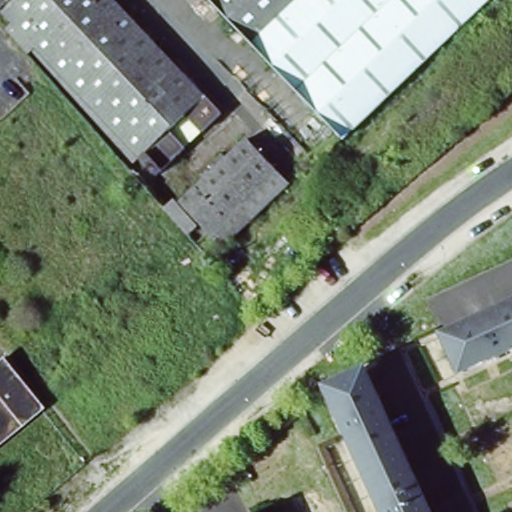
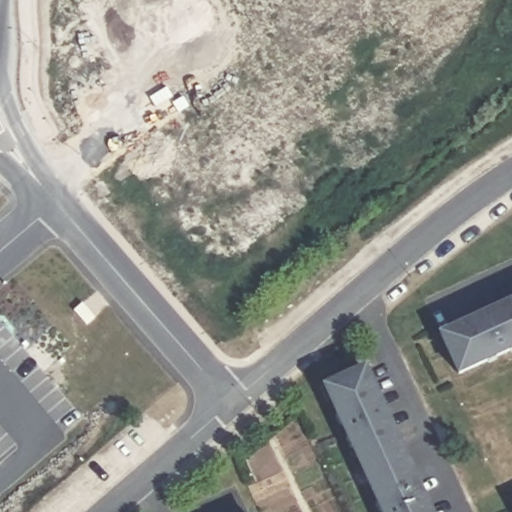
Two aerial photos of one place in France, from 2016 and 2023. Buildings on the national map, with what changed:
demolished [(186,144),(165,164),(159,170),(184,196),(250,136),(279,167),(197,242),(26,51),(36,42),(0,3),(0,0),(121,0),(223,109),(207,124),(192,107),(143,152),(145,155),(151,149),(172,130),(186,144)]
demolished [(491,0),(356,127),(329,152),(328,150),(186,0),(491,0)]
unchanged [(512,302),(512,349),(464,370),(446,332),(512,302)]
demolished [(2,358),(43,408),(23,426),(0,445),(0,359),(2,358)]
unchanged [(364,369),(431,512),(384,512),(326,387),(364,369)]

